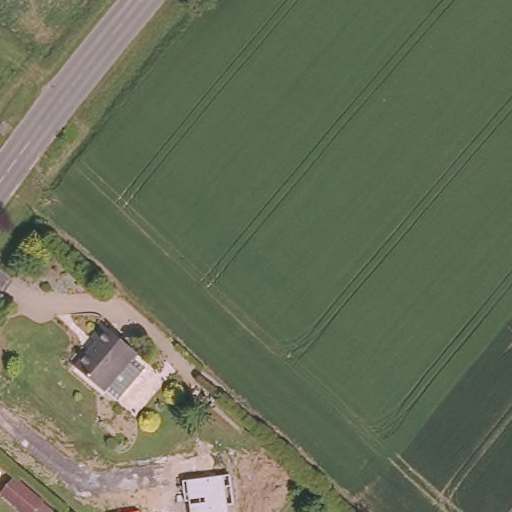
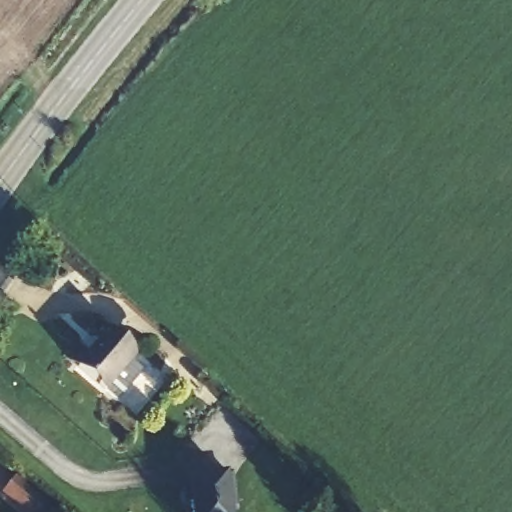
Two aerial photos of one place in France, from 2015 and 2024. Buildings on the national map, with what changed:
unchanged [(117,407),(103,395),(102,398),(75,375),(96,351),(90,345),(102,330),(134,359),(130,364),(143,376),(117,407)]
unchanged [(232,475),(235,505),(228,506),(229,512),(192,512),(190,504),(185,504),(182,482),(232,475)]
unchanged [(53,510),(52,512),(23,512),(4,496),(5,494),(17,479),(53,510)]

